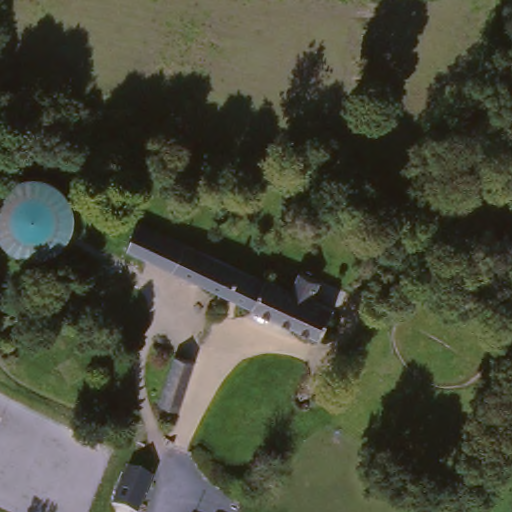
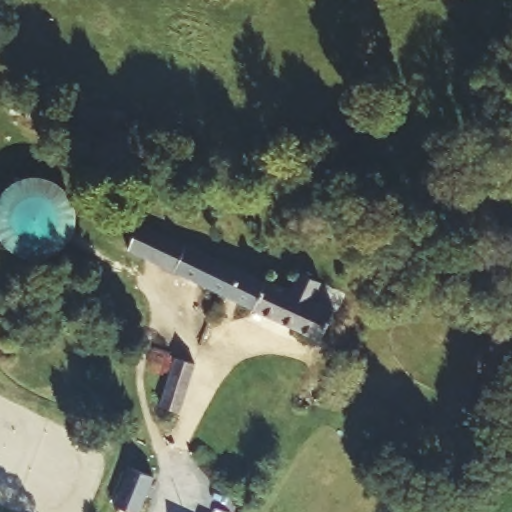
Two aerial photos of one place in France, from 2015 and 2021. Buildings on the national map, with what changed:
unchanged [(28,188),(31,188),(33,189),(36,189),(39,190),(41,191),(44,192),(46,194),(49,195),(51,197),(53,198),(55,200),(57,203),(59,205),(60,207),(62,209),(62,212),(64,215),(65,217),(65,220),(66,223),(66,225),(66,228),(66,231),(66,234),(65,236),(65,239),(64,242),(62,244),(62,247),(60,249),(59,251),(57,253),(55,255),(53,257),(51,259),(49,261),(46,262),(44,263),(41,264),(39,265),(36,266),(34,266),(31,267),(28,267),(25,267),(22,267),(20,266),(17,266),(14,265),(12,264),(9,263),(7,261),(4,260),(2,258),(0,256),(0,198),(2,196),(4,194),(7,193),(9,192),(12,191),(14,190),(17,189),(20,188),(22,188),(25,188),(28,188)]
unchanged [(313,346),(138,260),(123,251),(136,223),(164,236),(262,283),(265,279),(288,290),(297,276),(316,286),(311,293),(330,302),(323,310),(329,314),(313,346)]
unchanged [(175,366),(195,375),(175,421),(156,412),(172,374),(175,366)]
unchanged [(137,512),(110,512),(125,476),(128,477),(146,483),(137,512)]

